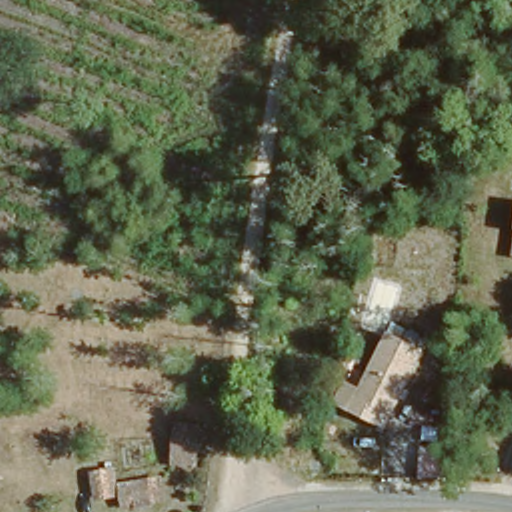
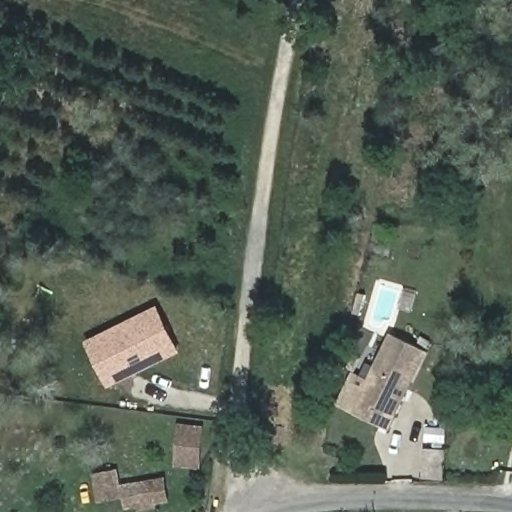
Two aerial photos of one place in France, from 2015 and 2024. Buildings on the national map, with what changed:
new [(158,306),(181,353),(109,388),(86,342),(158,306)]
unchanged [(428,351),(397,416),(389,412),(383,427),(356,413),(393,333),(428,351)]
unchanged [(175,463),(176,427),(208,430),(207,465),(175,463)]
new [(425,452),(445,455),(442,482),(422,479),(425,452)]
unchanged [(99,509),(96,475),(114,474),(117,508),(99,509)]
unchanged [(130,506),(129,482),(160,480),(162,503),(130,506)]

